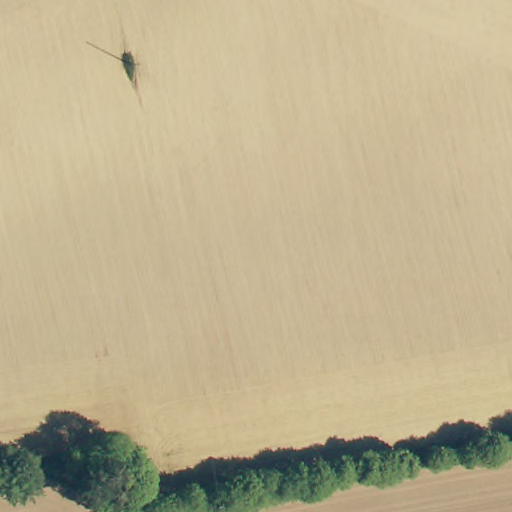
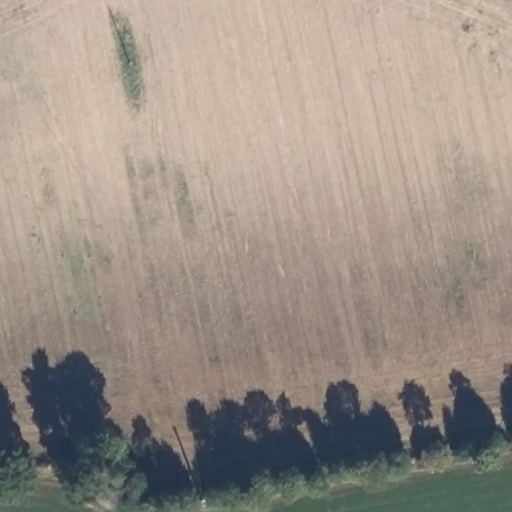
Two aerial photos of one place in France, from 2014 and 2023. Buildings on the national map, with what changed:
[]

